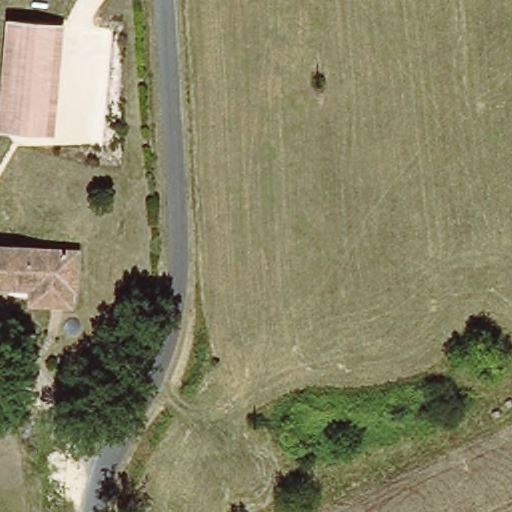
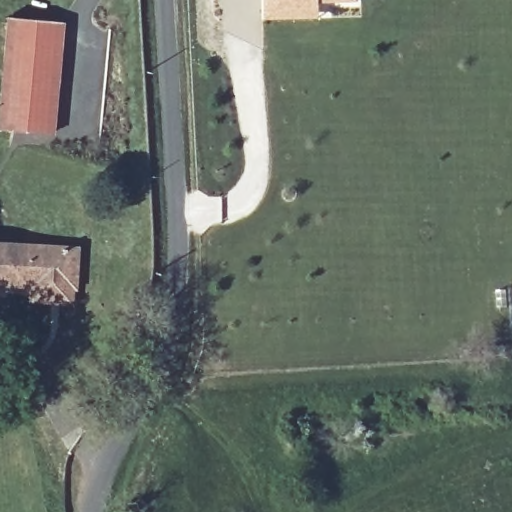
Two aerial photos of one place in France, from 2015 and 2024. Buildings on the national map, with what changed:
new [(262,19),(262,4),(262,0),(352,0),(352,2),(314,3),(315,18),(262,19)]
unchanged [(60,27),(50,139),(0,134),(0,81),(5,22),(60,27)]
unchanged [(74,253),(72,293),(0,288),(0,248),(74,253)]

